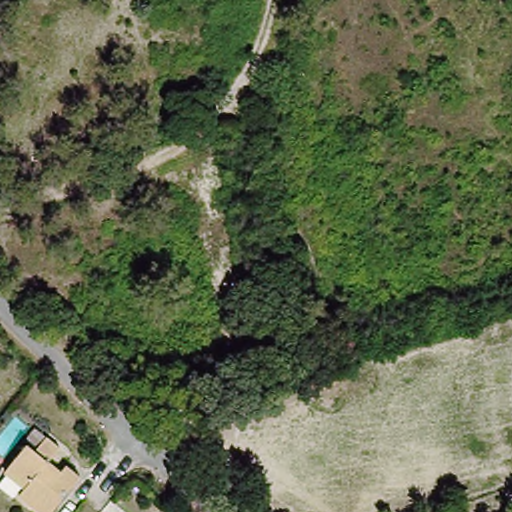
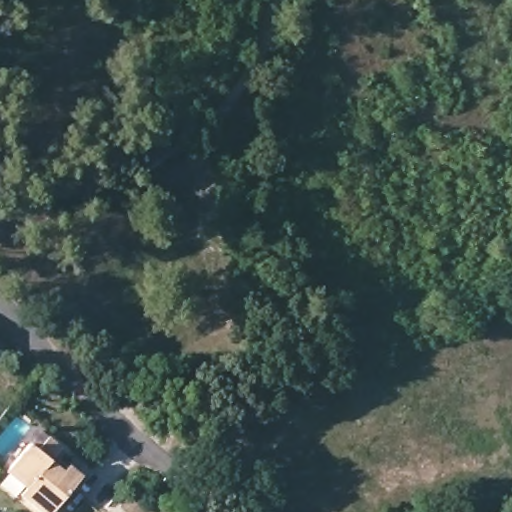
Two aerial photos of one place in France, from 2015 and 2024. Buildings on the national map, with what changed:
unchanged [(59,452),(49,465),(64,476),(68,471),(80,481),(54,512),(33,512),(18,501),(25,492),(6,477),(28,449),(38,455),(48,442),(59,452)]

